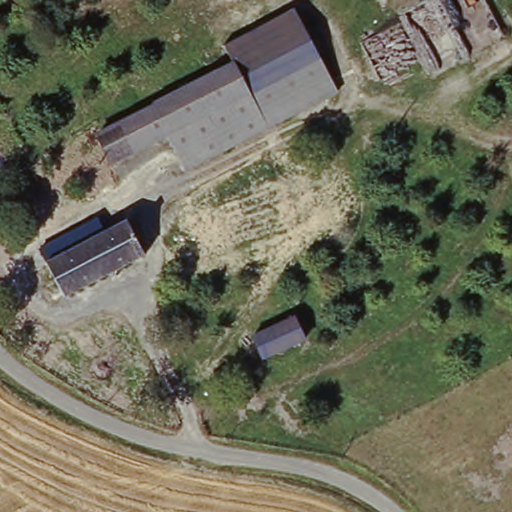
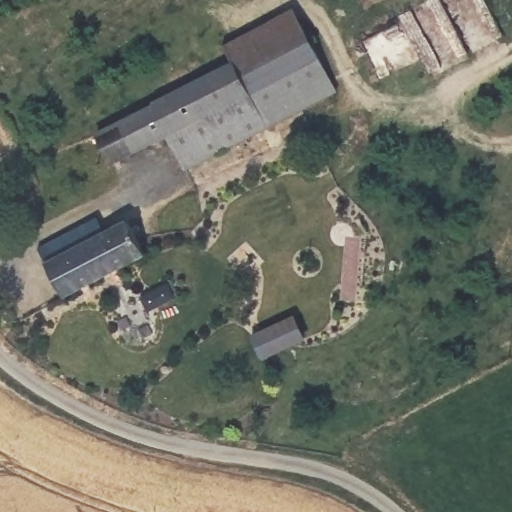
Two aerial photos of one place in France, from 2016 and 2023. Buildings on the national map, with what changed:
unchanged [(244,57),(312,26),(327,62),(262,94),(245,60),(244,57)]
unchanged [(107,133),(132,120),(164,103),(164,100),(245,60),(262,94),(327,62),(344,99),(190,171),(173,135),(147,148),(145,146),(119,159),(107,133)]
unchanged [(32,277),(47,269),(39,254),(97,224),(106,239),(129,228),(146,262),(50,312),(32,277)]
unchanged [(297,324),(308,348),(267,366),(257,343),(297,324)]

